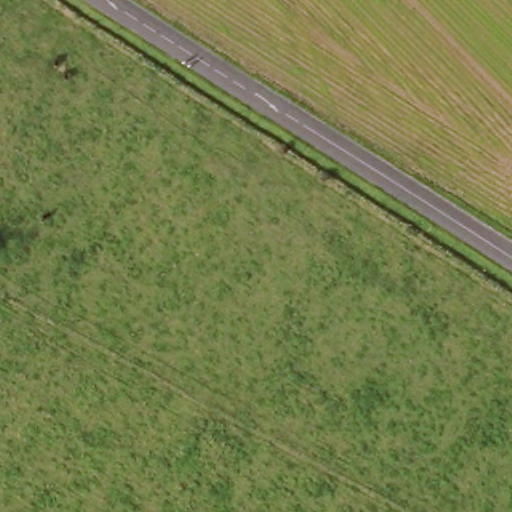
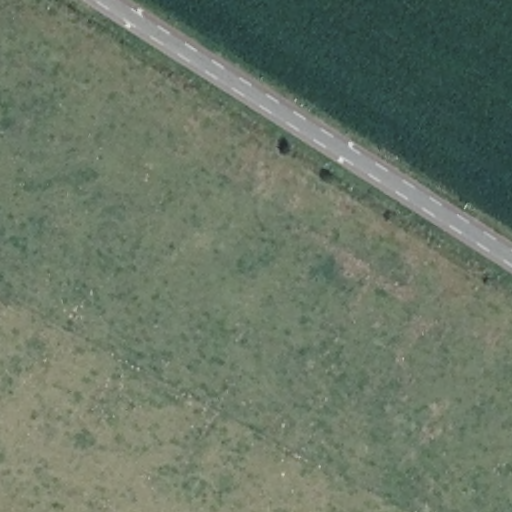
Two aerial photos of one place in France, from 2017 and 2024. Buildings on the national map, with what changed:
[]

